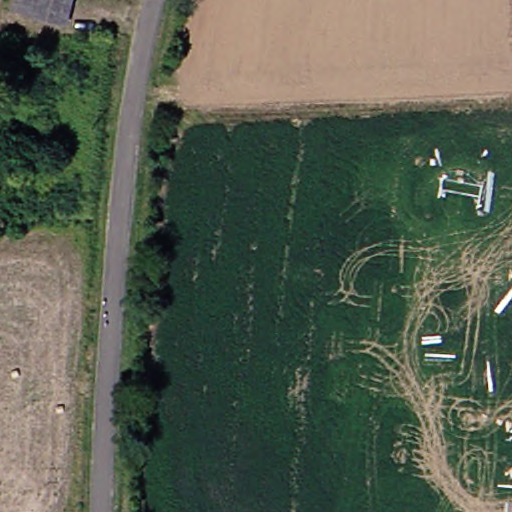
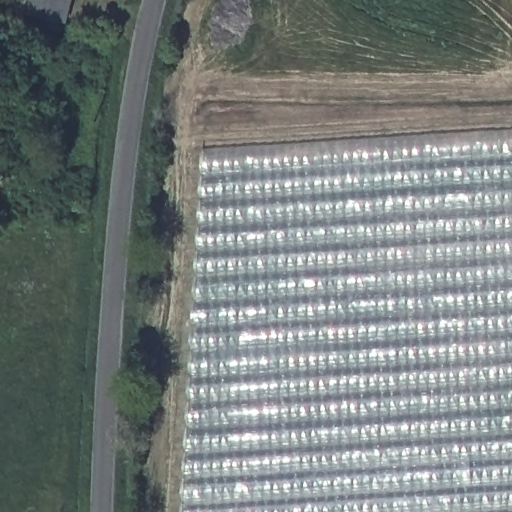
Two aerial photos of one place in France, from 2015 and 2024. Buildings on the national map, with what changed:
unchanged [(63,17),(28,10),(30,0),(67,0),(63,17)]
new [(512,130),(512,512),(183,512),(205,150),(512,130)]

